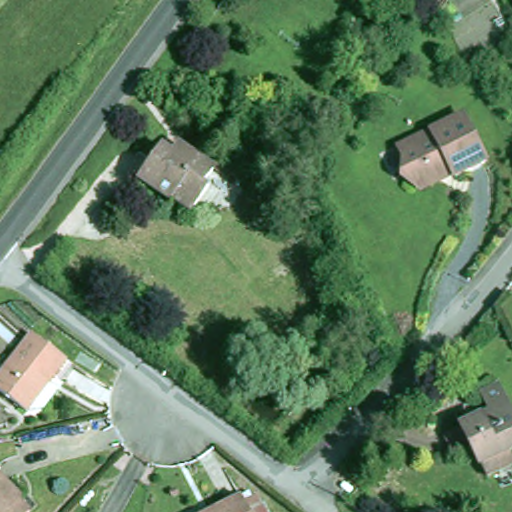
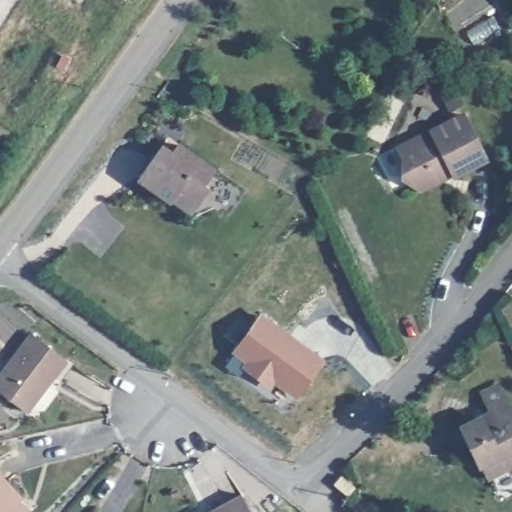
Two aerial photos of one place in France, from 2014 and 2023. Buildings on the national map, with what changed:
unchanged [(487,166),(456,184),(451,176),(442,184),(439,188),(435,192),(429,194),(423,194),(417,193),(412,190),(408,186),(405,181),(404,175),(404,169),(405,167),(400,155),(463,121),(487,166)]
unchanged [(180,153),(214,176),(205,191),(209,193),(195,214),(177,204),(174,208),(139,186),(160,154),(174,162),(180,153)]
new [(325,357),(296,398),(274,382),(270,388),(242,369),(247,361),(231,351),(260,311),(325,357)]
unchanged [(0,379),(32,340),(69,369),(27,416),(0,394),(0,379)]
unchanged [(509,455),(512,462),(512,471),(489,483),(460,427),(477,418),(481,424),(492,417),(480,396),(497,387),(512,418),(512,453),(509,455)]
unchanged [(9,499),(22,512),(0,512),(0,482),(14,496),(9,499)]
unchanged [(251,512),(218,512),(243,499),(251,512)]

